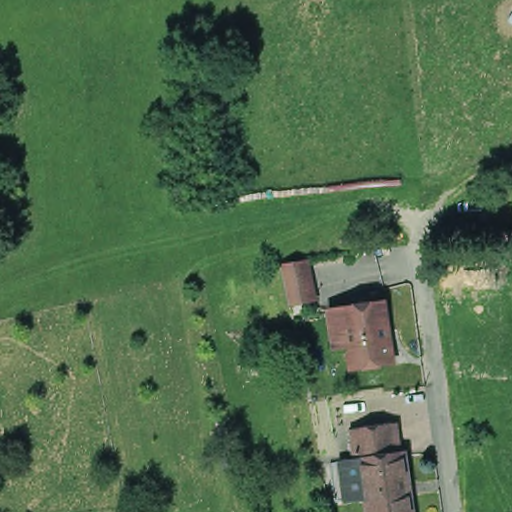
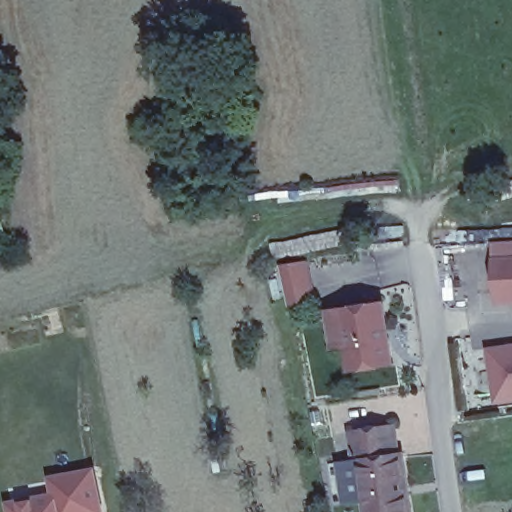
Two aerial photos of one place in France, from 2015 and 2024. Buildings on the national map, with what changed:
new [(491,242),(512,241),(512,303),(495,304),(491,242)]
unchanged [(307,259),(315,297),(295,301),(288,267),(287,263),(307,259)]
unchanged [(398,369),(357,375),(354,352),(340,354),(335,318),(349,316),(390,310),(398,369)]
new [(512,405),(496,407),(488,345),(512,342),(512,405)]
unchanged [(352,489),(350,470),(360,469),(355,439),(396,434),(400,463),(406,463),(413,512),(370,512),(367,487),(352,489)]
new [(9,512),(7,499),(52,491),(49,474),(97,465),(106,512),(9,512)]

